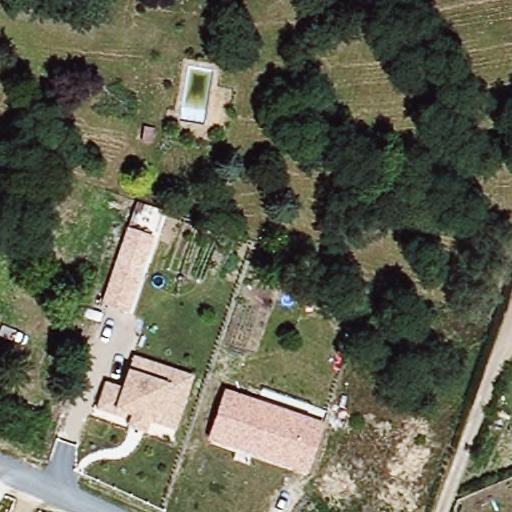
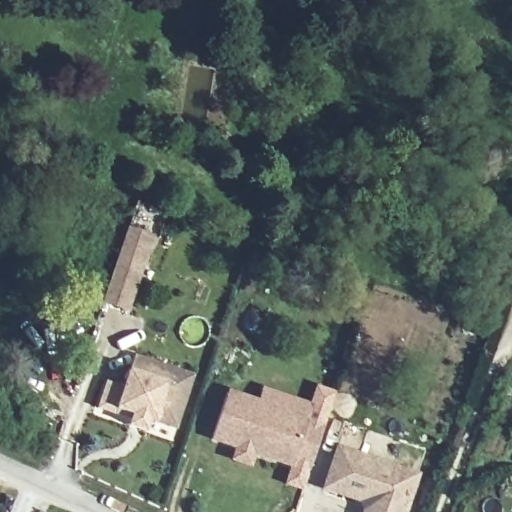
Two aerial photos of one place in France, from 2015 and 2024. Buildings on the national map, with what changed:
unchanged [(139,127),(140,113),(151,114),(150,127),(139,127)]
unchanged [(154,235),(129,310),(102,301),(128,226),(154,235)]
unchanged [(194,375),(177,430),(148,421),(145,430),(127,425),(129,419),(96,410),(105,381),(124,386),(134,356),(194,375)]
unchanged [(209,437),(222,390),(308,420),(295,465),(209,437)]
new [(363,502),(349,497),(326,490),(340,448),(421,475),(409,512),(368,512),(368,511),(363,502)]

